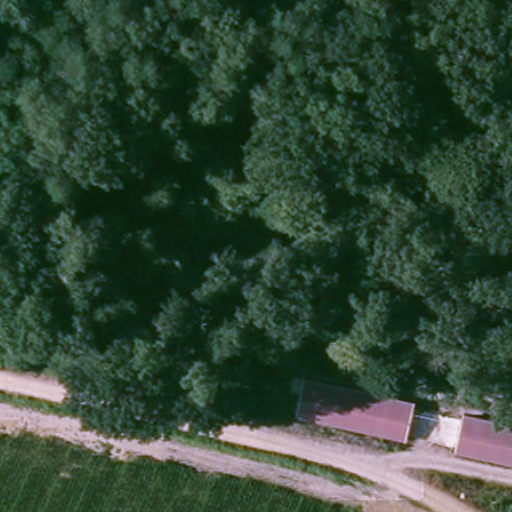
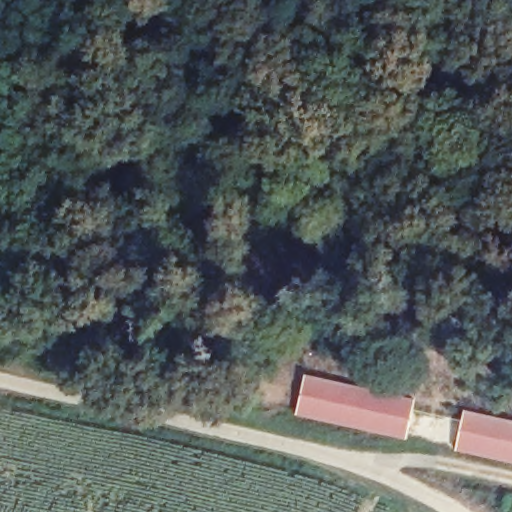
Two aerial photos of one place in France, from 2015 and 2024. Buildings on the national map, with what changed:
unchanged [(308,375),(380,393),(369,430),(302,412),(308,375)]
unchanged [(409,440),(369,430),(380,393),(418,402),(409,440)]
unchanged [(512,457),(464,447),(470,413),(512,422),(512,457)]

